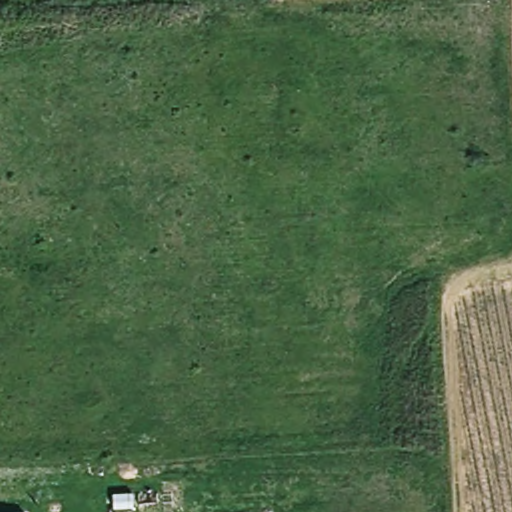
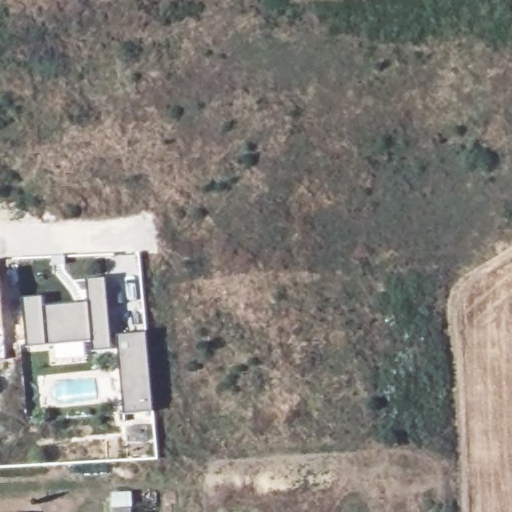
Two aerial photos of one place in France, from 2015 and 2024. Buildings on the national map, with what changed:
new [(27,349),(23,299),(43,298),(44,308),(89,303),(86,281),(106,280),(112,350),(93,353),(92,342),(27,349)]
new [(3,328),(0,328),(0,295),(2,316),(3,328)]
new [(147,333),(154,412),(124,416),(117,336),(147,333)]

